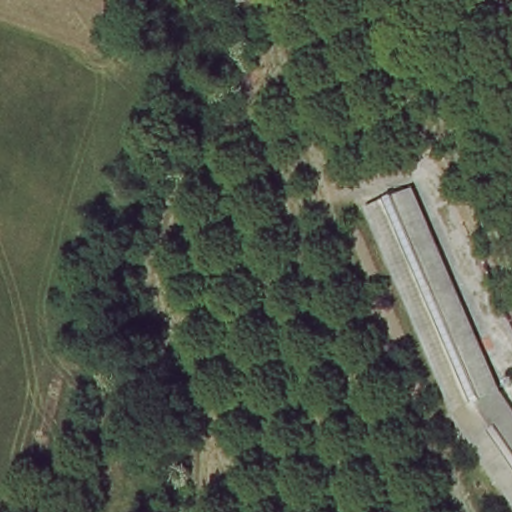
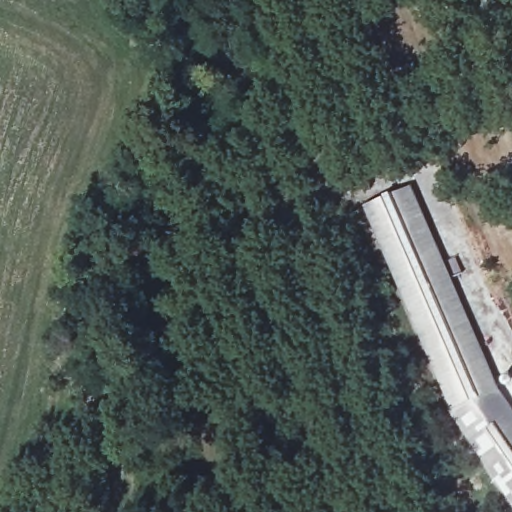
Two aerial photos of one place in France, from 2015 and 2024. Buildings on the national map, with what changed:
unchanged [(478,446),(448,400),(413,308),(371,200),(410,182),(457,298),(493,387),(512,417),(512,501),(503,486),(478,446)]

